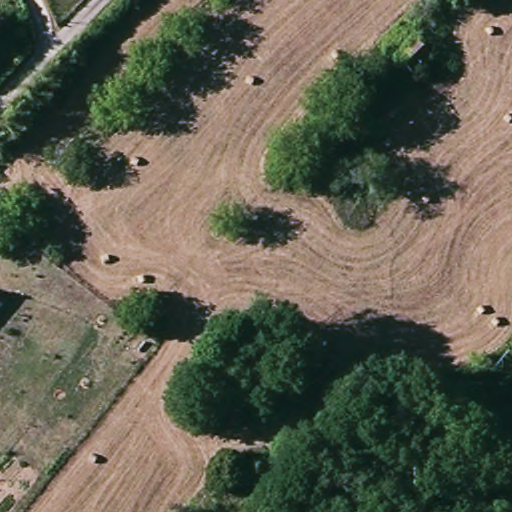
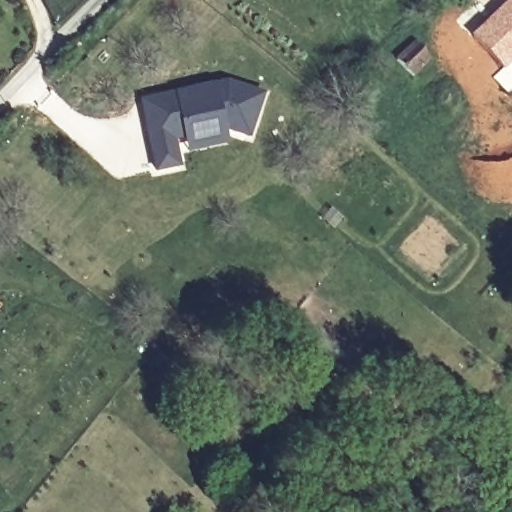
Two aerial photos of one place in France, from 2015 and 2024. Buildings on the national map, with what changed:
new [(512,63),(507,68),(512,73),(512,89),(507,94),(494,79),(503,71),(470,36),(508,0),(512,0),(512,63)]
unchanged [(424,43),(439,58),(422,75),(406,61),(424,43)]
new [(227,79),(268,93),(251,140),(228,135),(229,144),(182,154),(184,166),(155,172),(138,97),(227,79)]

